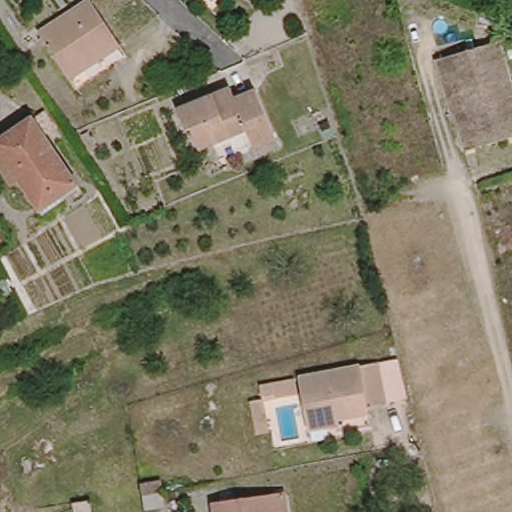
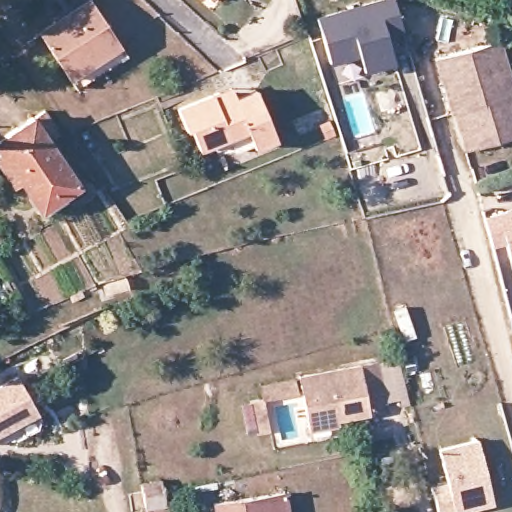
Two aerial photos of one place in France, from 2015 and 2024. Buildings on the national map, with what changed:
new [(389,37),(398,65),(367,75),(361,58),(332,65),(318,18),(373,0),(394,0),(403,29),(389,37)]
unchanged [(93,7),(124,52),(73,86),(43,41),(93,7)]
unchanged [(452,93),(451,94),(440,54),(487,40),(502,35),(508,56),(512,72),(512,133),(483,141),(468,146),(462,125),(452,93)]
unchanged [(227,141),(213,147),(209,140),(192,146),(184,127),(180,129),(171,108),(218,88),(227,84),(231,94),(254,85),(273,137),(251,145),(249,140),(229,147),(227,141)]
unchanged [(0,175),(0,156),(1,155),(0,155),(0,140),(1,139),(36,119),(68,173),(74,183),(59,192),(56,187),(30,202),(23,192),(18,183),(8,188),(0,175)]
new [(511,262),(507,245),(494,247),(486,217),(512,210),(512,262),(511,262)]
unchanged [(327,422),(306,424),(299,367),(377,354),(383,401),(368,403),(369,409),(337,413),(338,420),(327,422)]
new [(17,376),(39,415),(0,438),(0,387),(17,376)]
new [(438,512),(432,487),(449,487),(439,449),(478,440),(494,506),(463,512),(438,512)]
unchanged [(134,484),(158,480),(162,498),(165,512),(139,512),(137,502),(134,484)]
unchanged [(283,512),(212,512),(210,500),(281,490),(283,512)]

